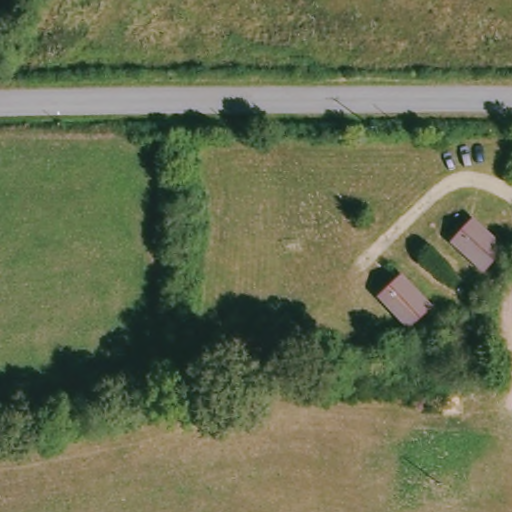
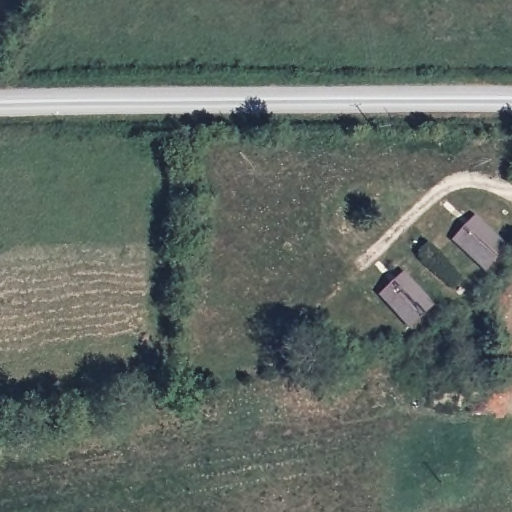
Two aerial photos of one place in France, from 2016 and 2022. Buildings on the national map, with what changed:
unchanged [(480,217),(512,243),(512,245),(489,274),(453,244),(480,217)]
unchanged [(407,270),(439,305),(412,329),(382,295),(407,270)]

